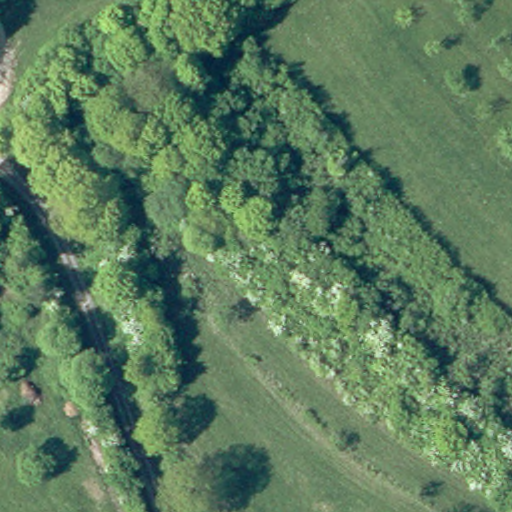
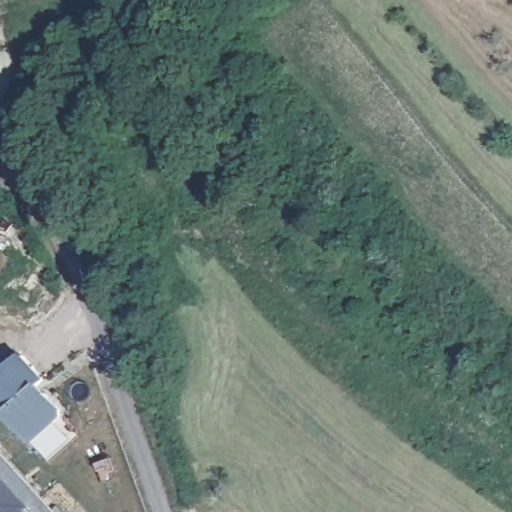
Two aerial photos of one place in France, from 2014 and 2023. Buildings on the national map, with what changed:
new [(31,445),(5,415),(0,410),(0,371),(21,353),(45,379),(38,383),(61,409),(61,418),(31,445)]
new [(26,507),(20,512),(0,512),(0,478),(26,507)]

